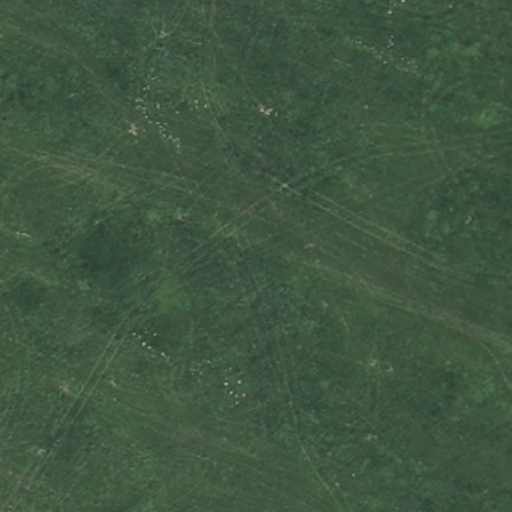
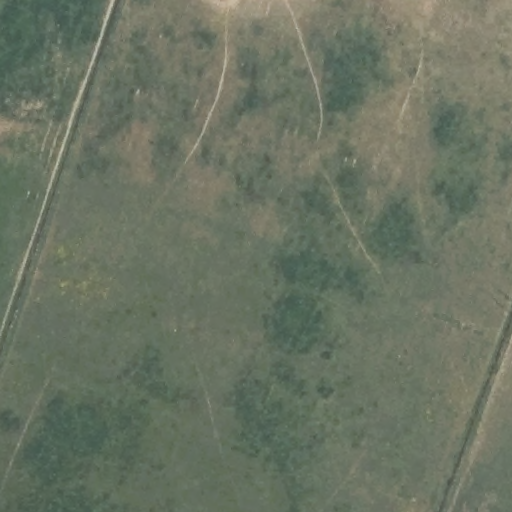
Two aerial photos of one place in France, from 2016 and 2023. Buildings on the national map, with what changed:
[]

